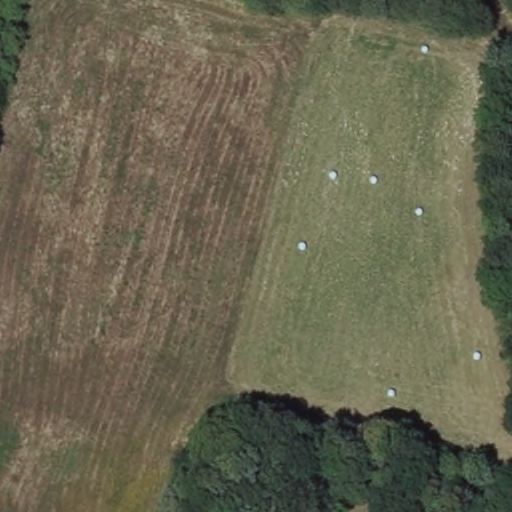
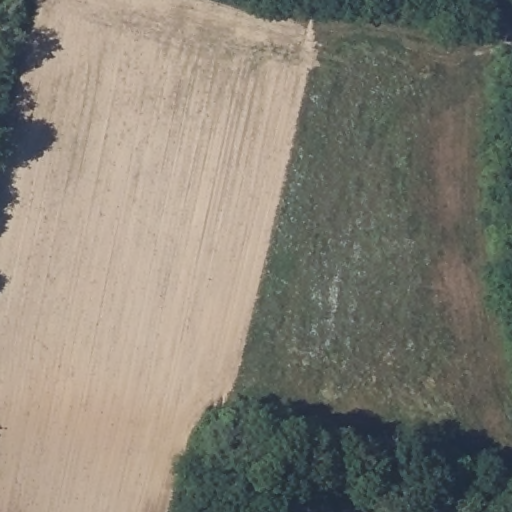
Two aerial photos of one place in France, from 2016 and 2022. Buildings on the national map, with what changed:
[]

